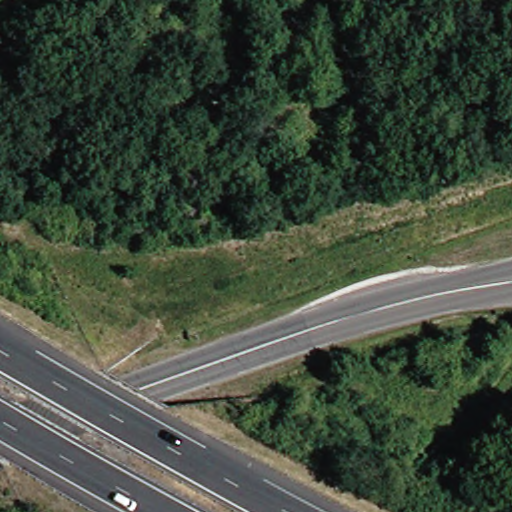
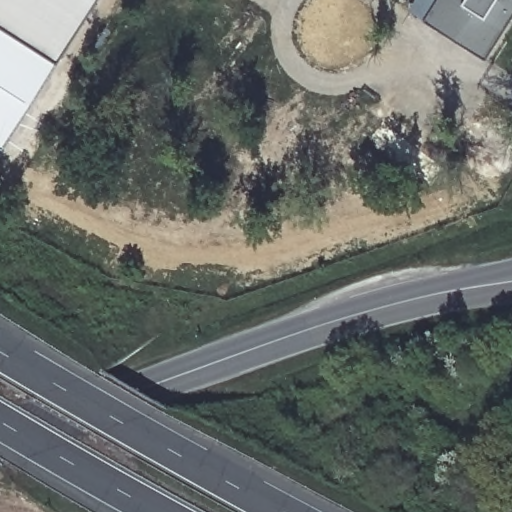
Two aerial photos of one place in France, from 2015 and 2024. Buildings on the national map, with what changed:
new [(0,24),(0,0),(97,0),(58,61),(0,24)]
new [(425,21),(438,0),(512,0),(512,19),(486,60),(425,21)]
new [(0,143),(0,24),(58,61),(4,145),(0,143)]

